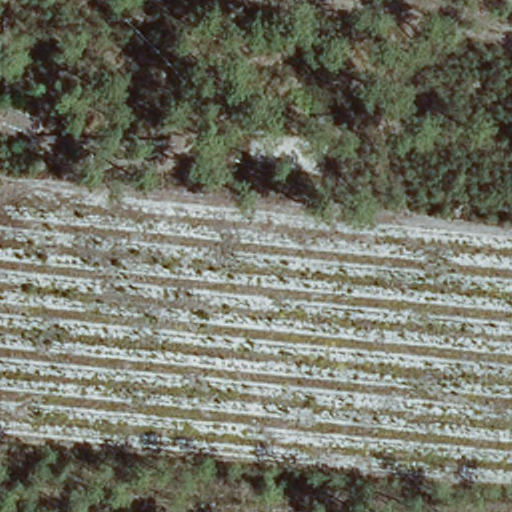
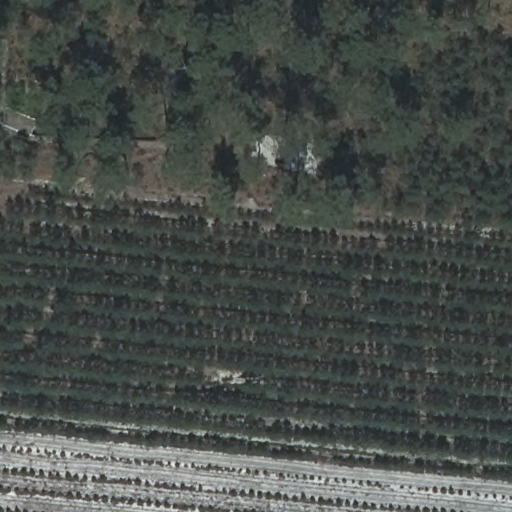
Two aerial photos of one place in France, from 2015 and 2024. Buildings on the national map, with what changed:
unchanged [(34,118),(29,133),(0,121),(0,107),(34,118)]

